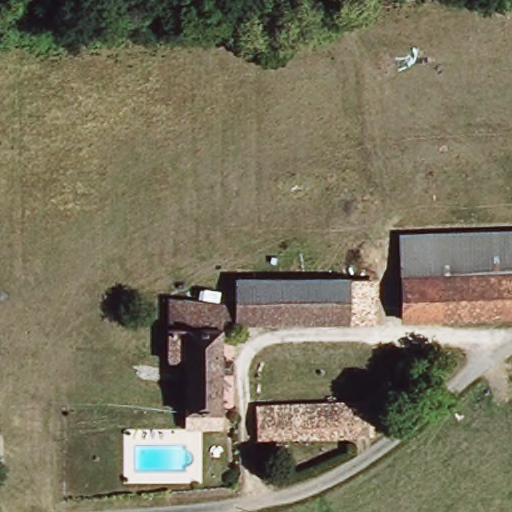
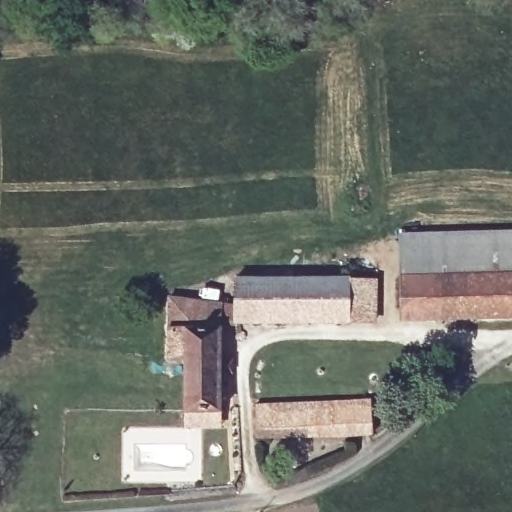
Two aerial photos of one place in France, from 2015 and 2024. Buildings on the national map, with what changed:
unchanged [(402,235),(512,234),(512,320),(404,323),(402,243),(402,235)]
unchanged [(352,316),(352,320),(237,319),(237,276),(351,276),(352,281),(377,282),(377,316),(352,316)]
unchanged [(224,406),(187,407),(185,355),(169,354),(170,294),(225,302),(222,328),(224,406)]
unchanged [(374,403),(372,435),(259,440),(257,408),(374,403)]

